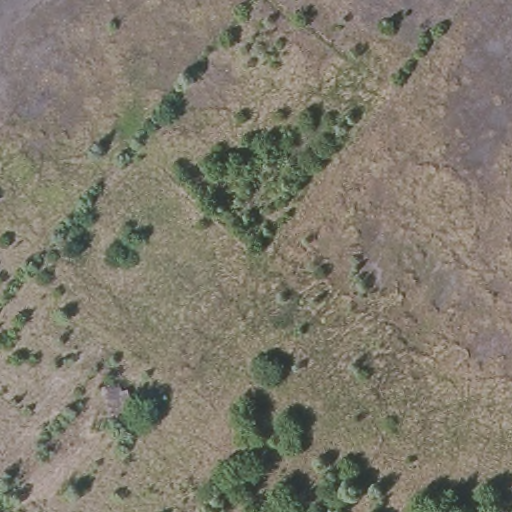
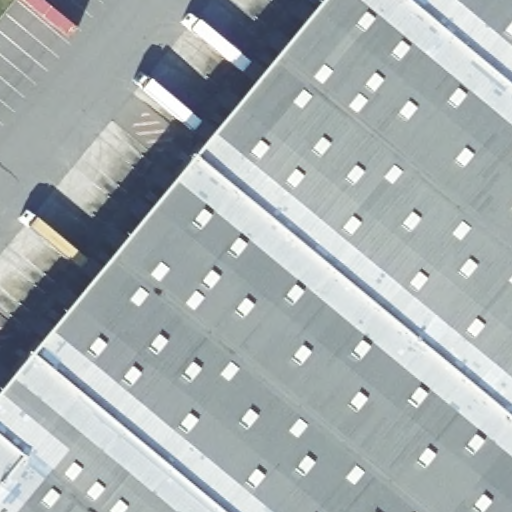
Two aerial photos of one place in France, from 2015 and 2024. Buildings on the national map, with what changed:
new [(0,512),(0,382),(316,0),(512,0),(512,512),(0,512)]

